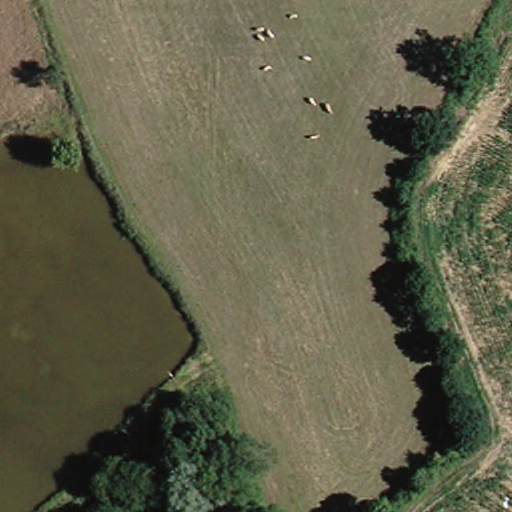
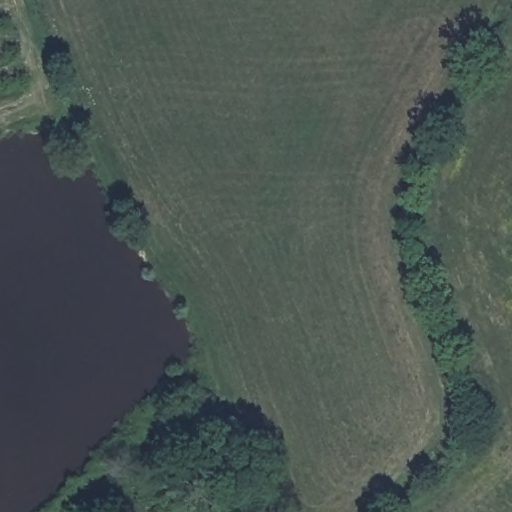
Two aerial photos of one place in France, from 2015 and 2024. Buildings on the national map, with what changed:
[]

